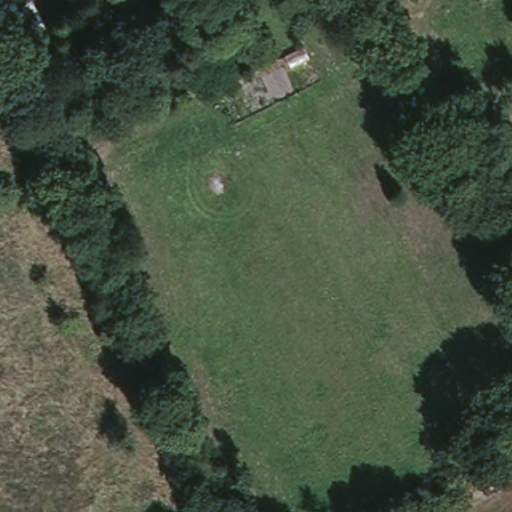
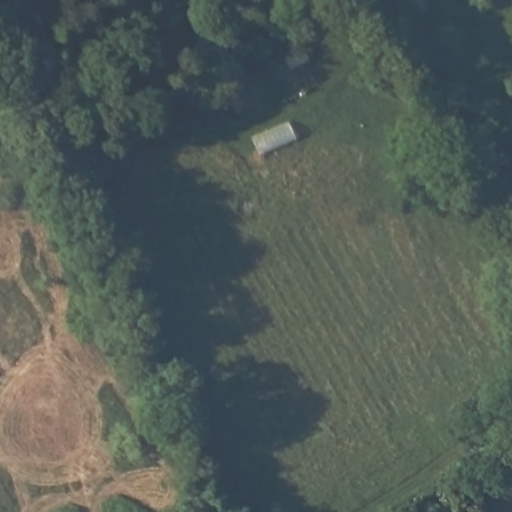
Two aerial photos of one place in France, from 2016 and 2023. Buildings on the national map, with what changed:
unchanged [(36,11),(47,31),(23,43),(13,23),(36,11)]

